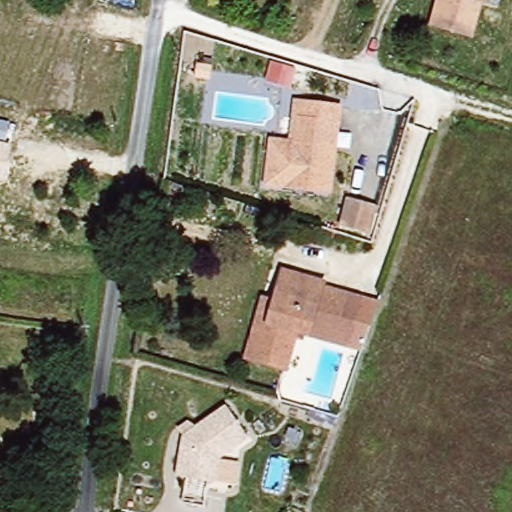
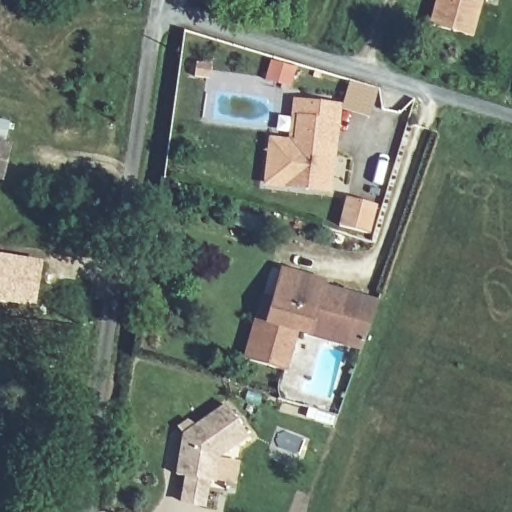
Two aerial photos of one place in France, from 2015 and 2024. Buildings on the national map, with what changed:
unchanged [(468,35),(428,24),(435,0),(478,0),(468,35)]
unchanged [(330,189),(268,177),(276,134),(299,139),(306,101),(344,107),(330,189)]
unchanged [(5,179),(0,178),(0,142),(11,145),(5,179)]
unchanged [(348,205),(371,213),(365,232),(343,225),(348,205)]
new [(35,307),(0,301),(0,253),(43,260),(35,307)]
unchanged [(303,282),(322,287),(321,292),(337,297),(358,302),(348,338),(327,332),(310,329),(309,338),(297,337),(286,373),(247,363),(259,324),(263,304),(276,307),(284,277),(303,282)]
unchanged [(230,490),(210,486),(174,480),(181,439),(226,411),(246,442),(215,462),(214,465),(234,469),(230,490)]

